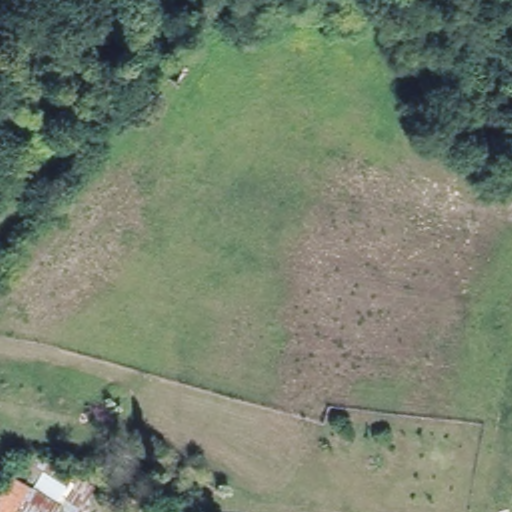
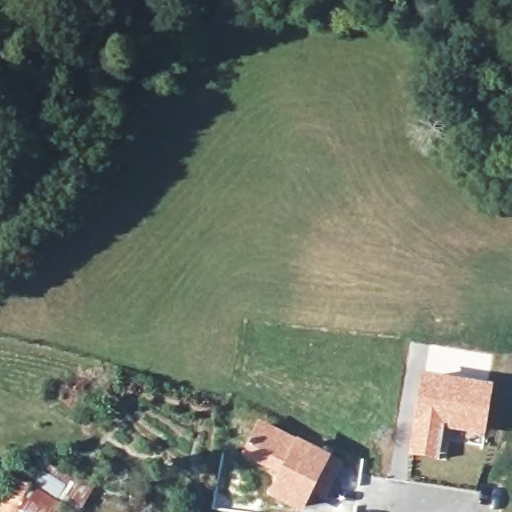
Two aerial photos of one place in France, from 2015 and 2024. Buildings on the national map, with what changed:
new [(420,370),(494,384),(485,436),(444,430),(439,460),(407,455),(420,370)]
new [(258,419),(344,463),(332,484),(321,478),(303,512),(299,512),(267,495),(276,476),(239,456),(258,419)]
unchanged [(11,473),(32,488),(44,471),(62,484),(69,472),(95,485),(86,512),(85,512),(82,510),(81,512),(69,512),(62,507),(58,512),(0,512),(0,490),(11,473)]

